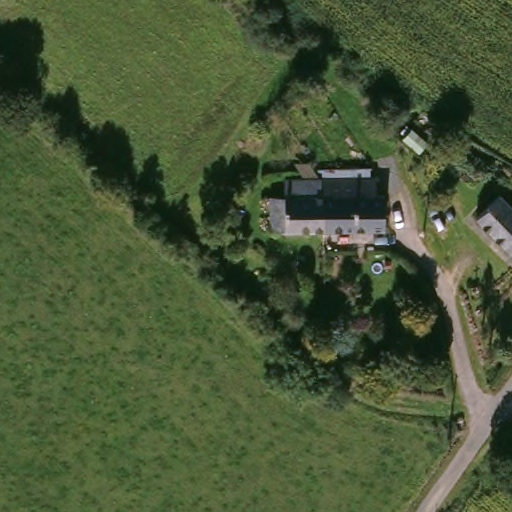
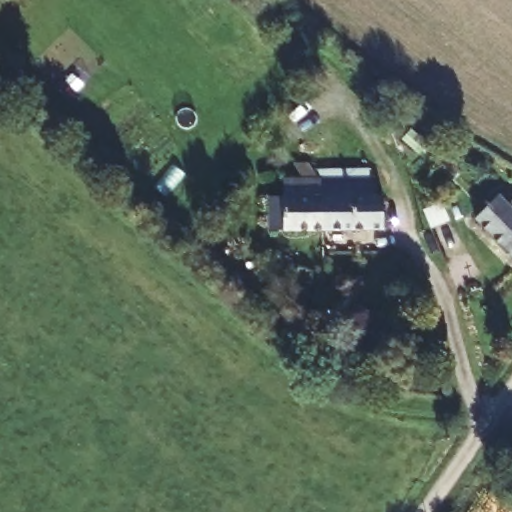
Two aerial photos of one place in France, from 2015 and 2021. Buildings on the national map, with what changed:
unchanged [(363,175),(363,179),(372,179),(375,196),(382,197),(382,230),(320,231),(317,182),(317,180),(316,177),(363,175)]
unchanged [(268,231),(267,198),(282,197),(282,181),(317,180),(317,182),(320,231),(268,231)]
unchanged [(497,199),(512,215),(512,258),(474,221),(497,199)]

